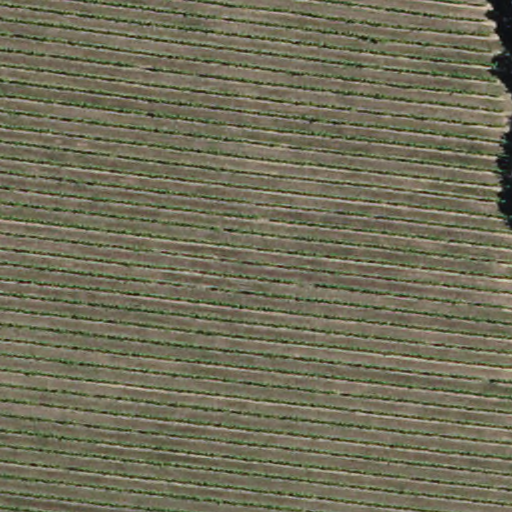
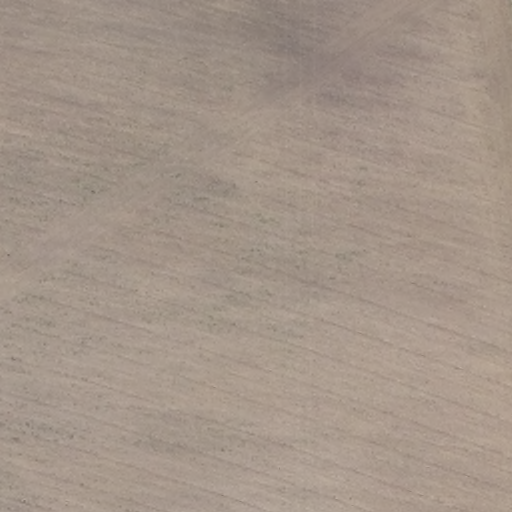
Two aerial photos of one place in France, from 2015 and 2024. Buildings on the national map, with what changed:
[]

